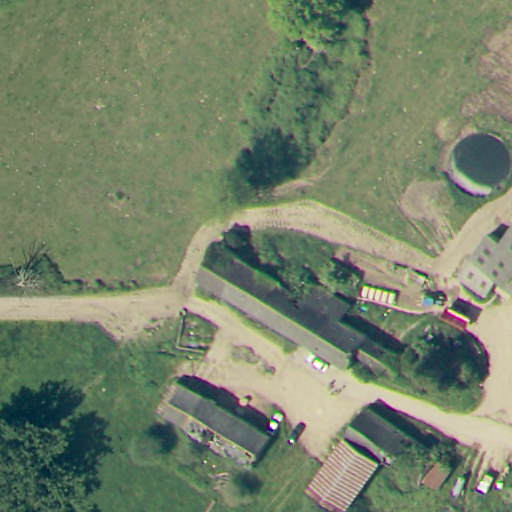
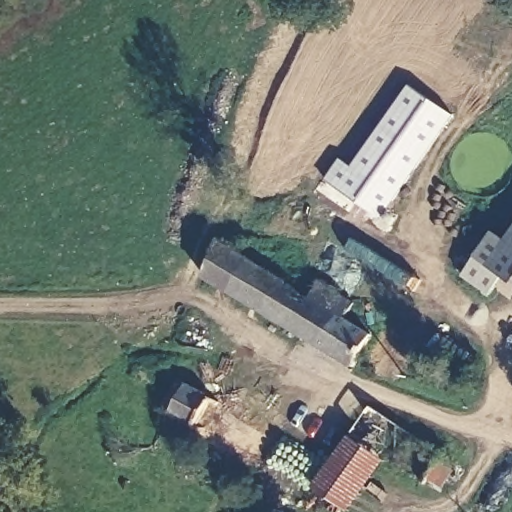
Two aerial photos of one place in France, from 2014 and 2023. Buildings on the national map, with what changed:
new [(343,158),(354,167),(412,85),(454,114),(382,217),(328,180),(343,158)]
unchanged [(505,241),(512,231),(512,246),(505,241)]
unchanged [(491,292),(464,277),(491,233),(505,241),(512,246),(512,264),(503,277),(491,292)]
unchanged [(220,244),(225,246),(230,237),(243,244),(237,253),(309,297),(319,282),(353,303),(344,318),(409,357),(399,376),(360,352),(353,367),(200,276),(220,244)]
unchanged [(512,264),(512,283),(503,277),(512,264)]
unchanged [(255,465),(160,410),(177,381),(272,436),(255,465)]
unchanged [(440,487),(427,478),(423,484),(384,458),(350,435),(369,406),(442,455),(441,457),(454,467),(440,487)]
unchanged [(347,511),(313,487),(350,435),(384,458),(347,511)]

